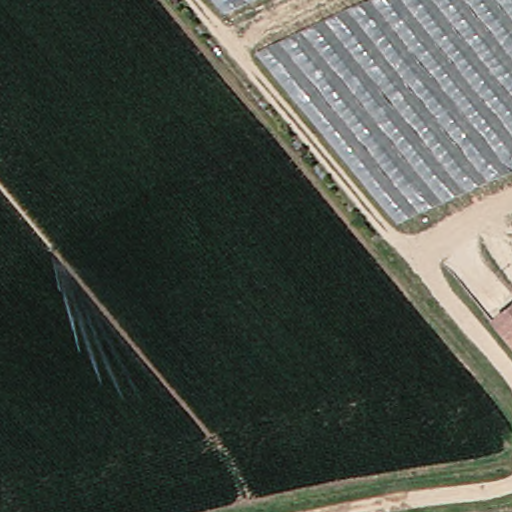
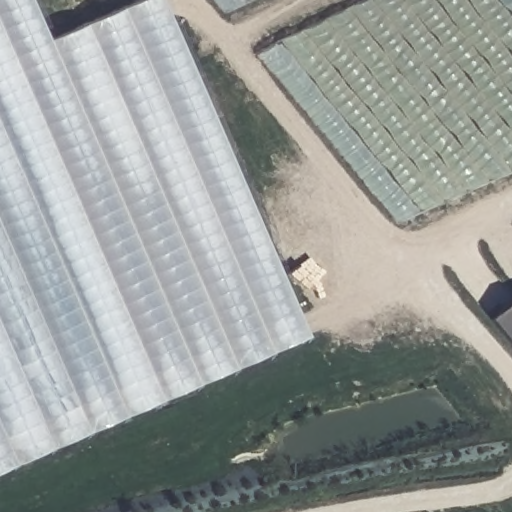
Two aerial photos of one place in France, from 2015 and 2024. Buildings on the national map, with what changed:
new [(140,0),(161,0),(308,337),(0,472),(0,0),(27,0),(45,42),(140,0)]
unchanged [(215,0),(245,0),(224,10),(215,0)]
unchanged [(396,222),(256,51),(366,0),(512,0),(512,172),(396,222)]
unchanged [(488,320),(512,299),(512,350),(488,320)]

